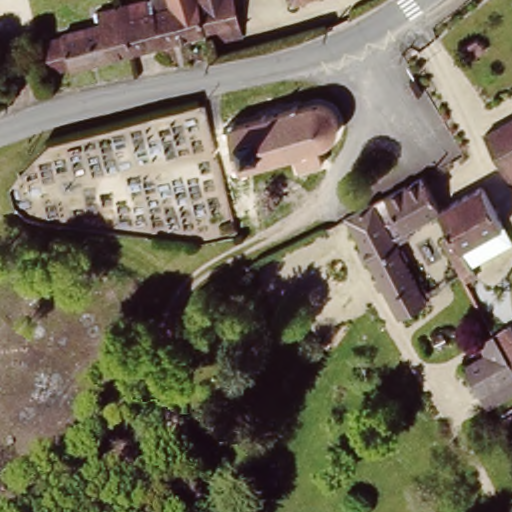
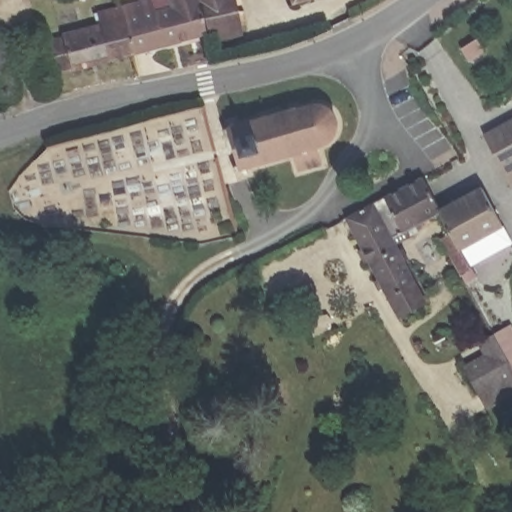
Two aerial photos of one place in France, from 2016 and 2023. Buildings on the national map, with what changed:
unchanged [(144,3),(148,19),(176,11),(172,0),(229,0),(229,1),(232,0),(235,0),(245,37),(215,49),(210,32),(135,54),(124,9),(144,3)]
unchanged [(307,0),(300,2),(299,0),(307,0)]
unchanged [(22,56),(74,39),(71,30),(95,22),(94,18),(124,9),(135,54),(29,84),(22,56)]
unchanged [(407,92),(416,86),(426,104),(417,110),(407,92)]
unchanged [(216,115),(276,103),(327,97),(338,106),(345,140),(338,149),(326,152),(330,167),(310,174),(305,157),(226,173),(216,115)]
unchanged [(480,135),(512,113),(512,184),(511,185),(480,135)]
unchanged [(420,176),(429,171),(444,199),(437,203),(441,210),(387,245),(366,202),(420,176)]
unchanged [(454,202),(479,186),(500,221),(459,244),(441,210),(454,202)]
unchanged [(381,284),(377,286),(342,215),(366,202),(387,245),(412,296),(392,307),(381,284)]
unchanged [(459,244),(470,263),(458,270),(448,251),(459,244)]
unchanged [(487,326),(501,317),(512,344),(512,356),(504,361),(487,326)]
unchanged [(473,392),(493,381),(490,376),(464,390),(456,375),(476,363),(471,353),(486,345),(501,377),(503,376),(508,385),(479,401),(471,405),(466,395),(473,392)]

